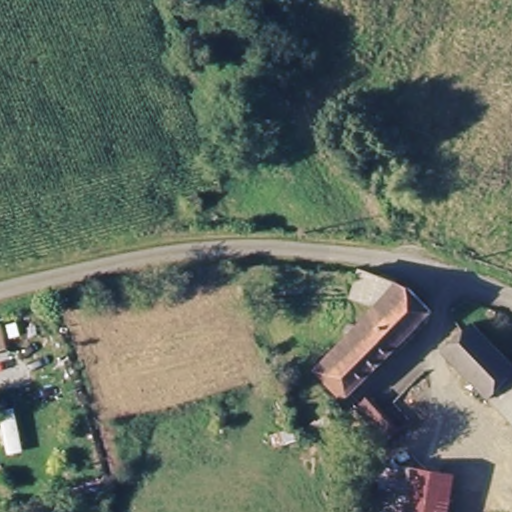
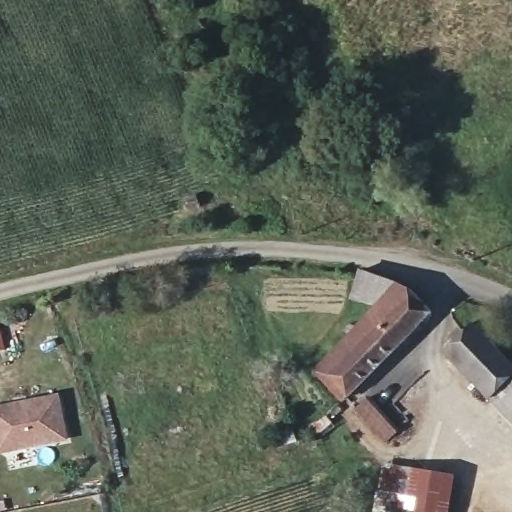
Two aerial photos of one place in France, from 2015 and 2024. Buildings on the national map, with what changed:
unchanged [(320,378),(327,369),(355,343),(350,337),(359,327),(364,333),(383,313),(358,302),(365,283),(367,274),(418,293),(437,314),(357,398),(351,404),(320,378)]
unchanged [(441,349),(469,322),(512,365),(512,370),(485,394),(441,349)]
unchanged [(509,420),(492,402),(512,384),(512,417),(509,420)]
new [(0,456),(0,406),(59,395),(68,442),(0,456)]
unchanged [(363,396),(395,430),(383,443),(349,406),(363,396)]
unchanged [(509,420),(512,417),(512,423),(509,420)]
unchanged [(379,463),(409,467),(457,475),(452,512),(380,512),(374,511),(379,463)]

